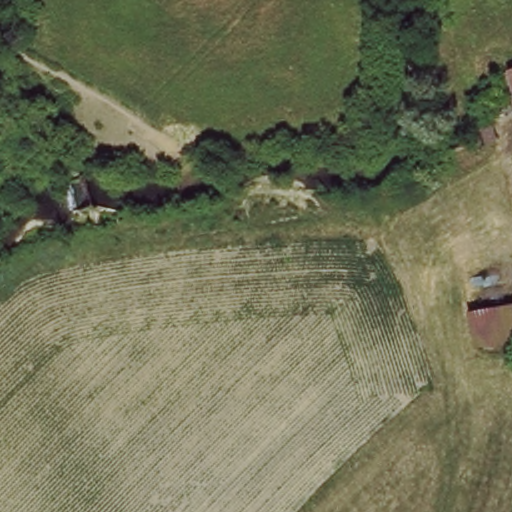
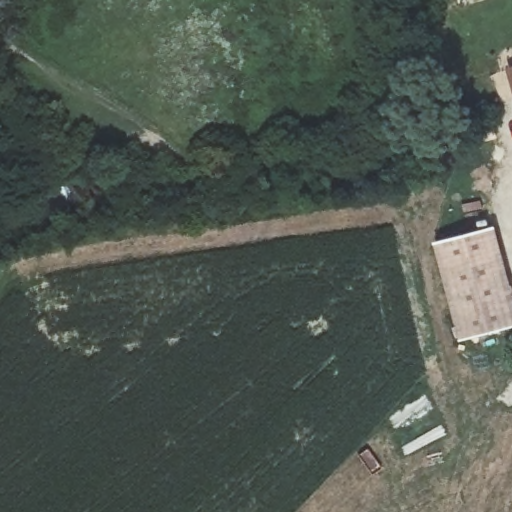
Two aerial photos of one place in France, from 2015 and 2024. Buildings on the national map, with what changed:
unchanged [(510,68),(512,68),(512,93),(506,70),(510,68)]
unchanged [(498,135),(483,140),(480,129),(495,123),(498,135)]
new [(512,290),(512,329),(460,342),(434,244),(496,228),(512,290)]
demolished [(470,310),(512,301),(512,338),(475,346),(470,310)]

